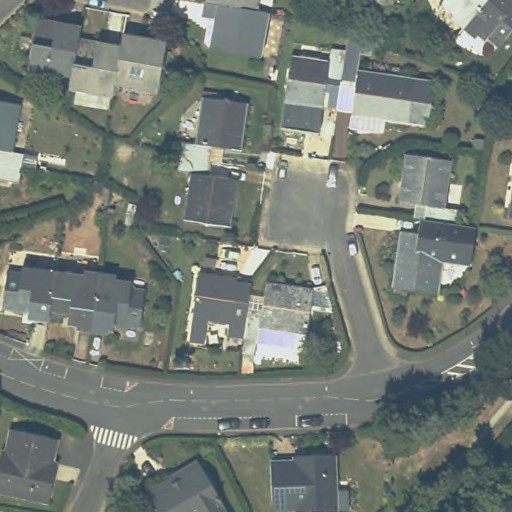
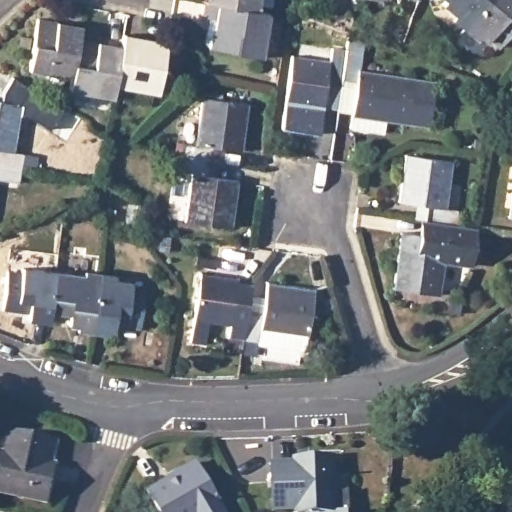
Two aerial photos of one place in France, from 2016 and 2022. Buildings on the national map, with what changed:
unchanged [(205,0),(272,0),(270,14),(256,11),(255,17),(204,8),(205,0)]
unchanged [(453,4),(447,0),(501,0),(475,30),(450,8),(453,4)]
unchanged [(493,46),(475,30),(501,0),(512,0),(512,47),(506,53),(496,44),(493,46)]
unchanged [(259,63),(208,53),(214,25),(200,23),(204,8),(255,17),(267,19),(259,63)]
unchanged [(31,74),(40,24),(84,32),(81,43),(75,83),(31,74)]
unchanged [(125,51),(126,39),(170,47),(161,98),(118,90),(125,51)]
unchanged [(125,51),(118,90),(116,103),(73,96),(75,83),(81,43),(125,51)]
unchanged [(330,79),(325,108),(288,103),(295,56),(332,61),(334,48),(349,50),(345,82),(330,79)]
unchanged [(359,84),(345,82),(349,50),(363,52),(361,69),(417,76),(417,80),(437,82),(430,127),(387,122),(386,134),(353,130),(355,118),(359,84)]
unchanged [(182,157),(185,143),(198,145),(205,97),(251,104),(244,152),(216,148),(214,162),(182,157)]
unchanged [(0,164),(0,102),(24,106),(16,152),(27,154),(24,168),(0,164)]
unchanged [(427,220),(422,219),(423,206),(397,202),(403,155),(450,162),(443,209),(455,210),(453,224),(427,220)]
unchanged [(186,220),(193,174),(180,173),(182,157),(214,162),(211,176),(240,181),(233,229),(186,220)]
unchanged [(21,182),(0,179),(0,164),(24,168),(21,182)]
unchanged [(512,199),(512,207),(511,207),(512,199)]
unchanged [(453,224),(472,227),(467,267),(441,263),(437,294),(390,287),(397,232),(425,236),(427,220),(453,224)]
unchanged [(30,314),(31,306),(5,302),(10,267),(23,269),(24,262),(59,267),(54,309),(52,317),(30,314)]
unchanged [(70,318),(70,311),(54,309),(59,267),(101,274),(95,322),(70,318)]
unchanged [(232,337),(234,325),(211,322),(209,344),(194,342),(201,273),(240,278),(237,305),(250,308),(246,339),(232,337)]
unchanged [(101,274),(135,278),(134,284),(147,285),(141,326),(116,322),(115,325),(95,322),(101,274)]
unchanged [(261,341),(246,339),(250,308),(266,310),(270,282),(316,289),(310,336),(309,336),(307,348),(261,341)]
unchanged [(0,494),(0,453),(4,453),(9,431),(55,441),(50,463),(56,464),(47,504),(0,494)]
unchanged [(300,510),(275,510),(274,463),(297,463),(297,456),(336,456),(338,512),(300,512),(300,510)]
unchanged [(145,487),(195,458),(223,505),(219,506),(222,512),(159,512),(145,487)]

